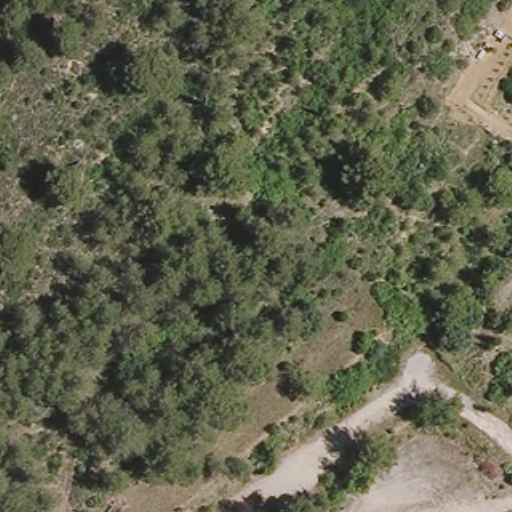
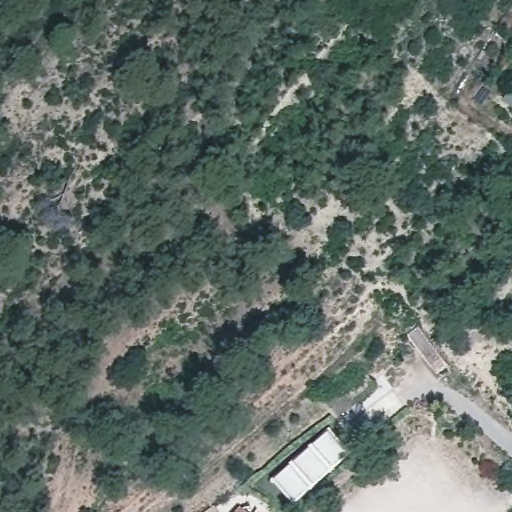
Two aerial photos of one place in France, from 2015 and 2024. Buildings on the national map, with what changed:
new [(294,503),(274,479),(329,432),(350,456),(294,503)]
unchanged [(261,512),(249,512),(253,507),(261,512)]

